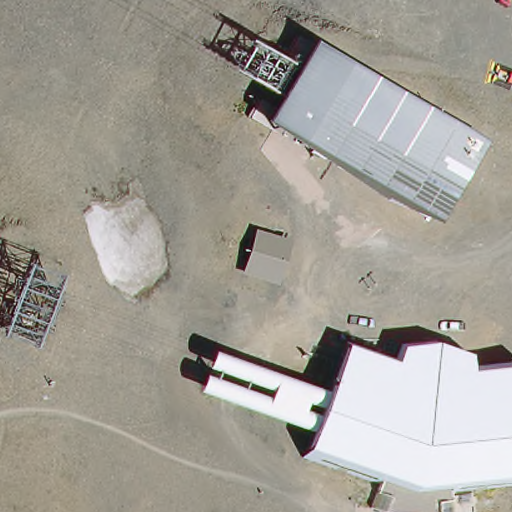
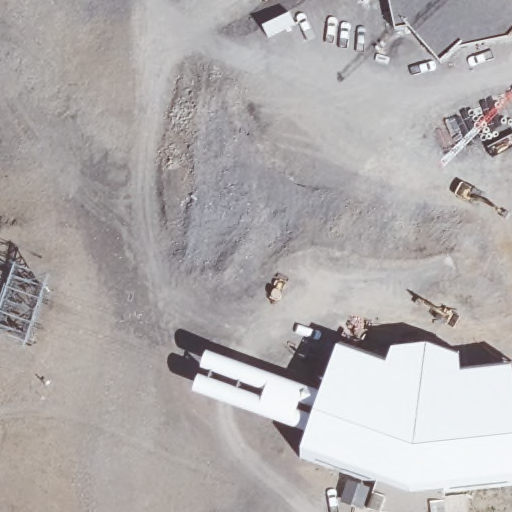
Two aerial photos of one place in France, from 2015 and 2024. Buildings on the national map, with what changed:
new [(442,62),(407,25),(397,28),(392,0),(512,0),(512,36),(460,46),(442,62)]
demolished [(479,147),(437,228),(258,134),(268,118),(218,91),(231,65),(240,49),(289,74),(299,48),(479,147)]
unchanged [(233,228),(283,239),(275,284),(240,274),(233,228)]
unchanged [(340,353),(391,368),(395,351),(429,345),(469,357),(466,373),(512,366),(512,482),(416,494),(303,455),(313,433),(194,396),(203,376),(211,353),(323,392),(340,353)]

